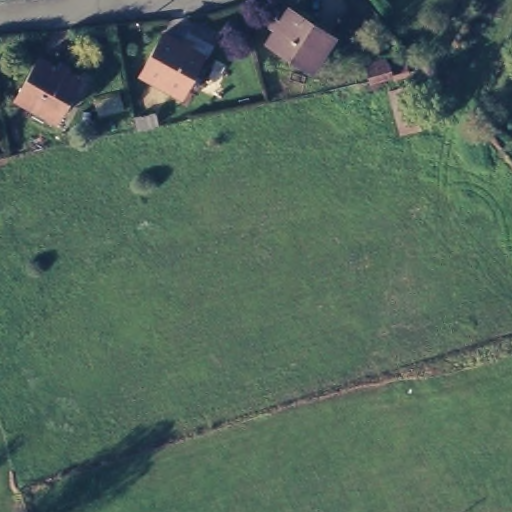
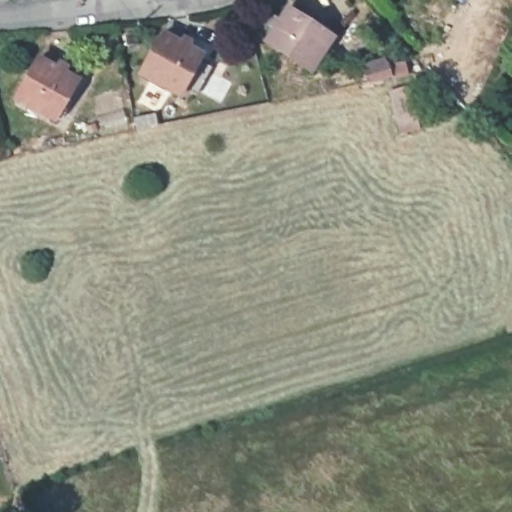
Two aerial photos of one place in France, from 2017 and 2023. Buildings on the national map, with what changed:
unchanged [(334,43),(312,77),(265,46),(274,33),(268,29),(272,23),(278,26),(287,13),(334,43)]
unchanged [(180,89),(142,69),(163,29),(182,40),(185,34),(191,37),(188,43),(201,50),(180,89)]
unchanged [(62,121),(23,99),(45,61),(65,72),(68,66),(74,69),(70,75),(84,83),(62,121)]
unchanged [(385,64),(388,75),(371,80),(368,69),(385,64)]
unchanged [(422,129),(399,134),(391,92),(417,86),(422,129)]
unchanged [(155,114),(157,125),(137,129),(135,118),(155,114)]
unchanged [(45,136),(48,146),(31,150),(30,139),(45,136)]

